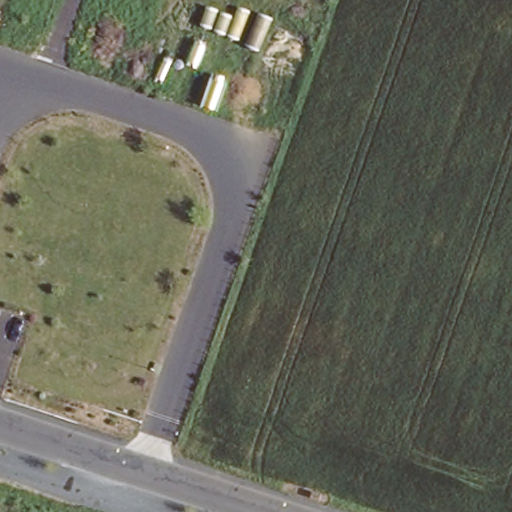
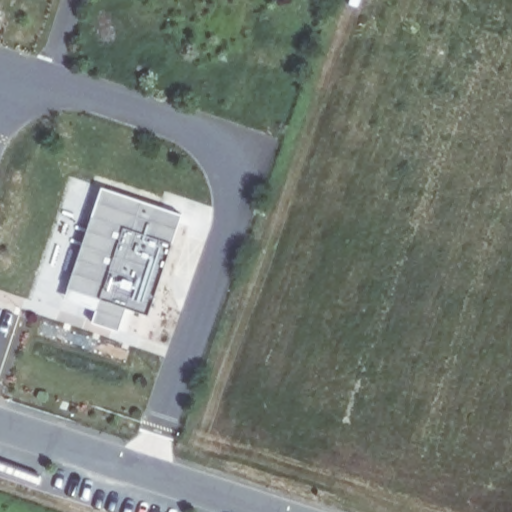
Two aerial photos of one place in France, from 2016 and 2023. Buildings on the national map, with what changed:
new [(102,188),(183,214),(150,316),(129,309),(122,332),(95,323),(98,311),(66,300),(70,289),(102,188)]

